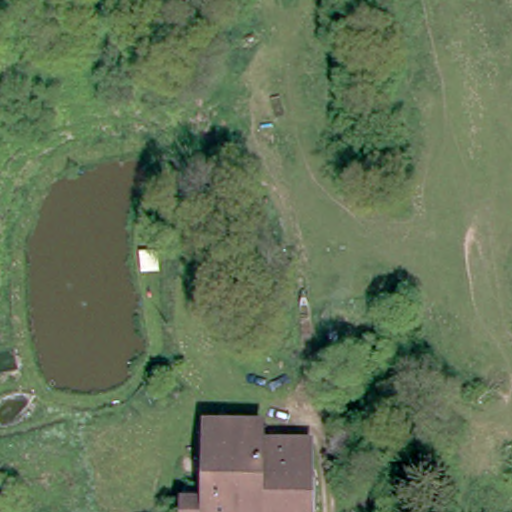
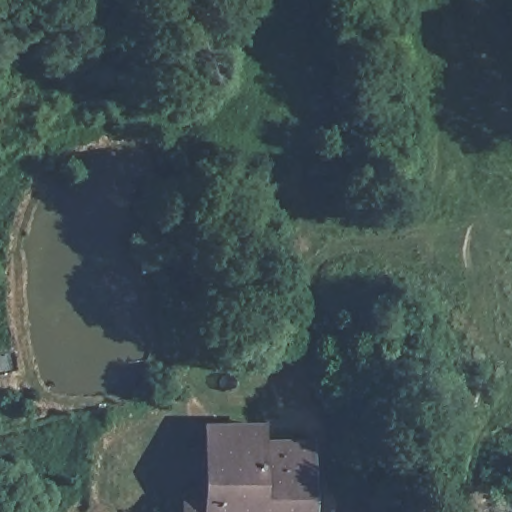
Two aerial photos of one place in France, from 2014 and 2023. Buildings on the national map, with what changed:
unchanged [(204,493),(205,443),(252,442),(289,442),(311,442),(312,512),(182,512),(182,493),(204,493)]

